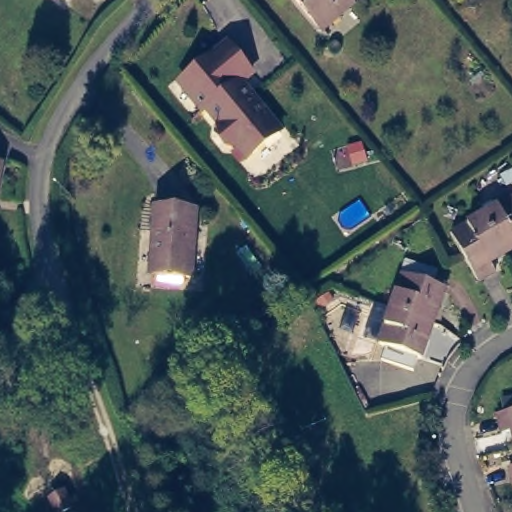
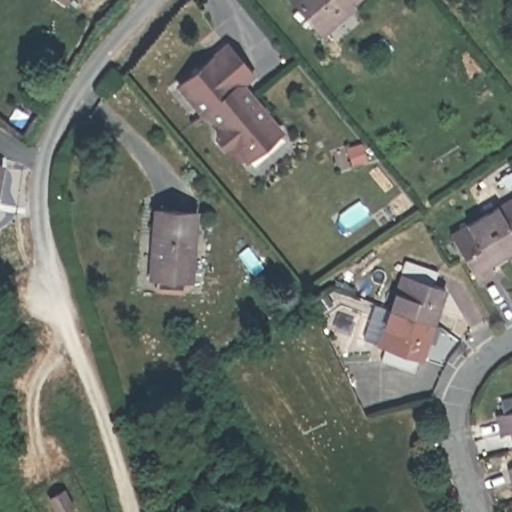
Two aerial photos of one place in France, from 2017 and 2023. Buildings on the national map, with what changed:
unchanged [(297,0),(352,0),(320,27),(297,0)]
unchanged [(228,42),(251,71),(241,80),(280,127),(246,156),(236,144),(226,143),(216,132),(218,121),(206,107),(203,110),(179,81),(228,42)]
unchanged [(0,201),(0,166),(5,166),(0,201)]
unchanged [(494,273),(478,283),(450,234),(512,200),(512,253),(489,264),(494,273)]
unchanged [(193,283),(153,279),(159,212),(201,214),(193,283)]
unchanged [(440,274),(437,286),(449,291),(424,363),(419,361),(415,373),(384,362),(388,350),(381,347),(406,277),(402,273),(406,261),(440,274)]
unchanged [(500,413),(512,410),(512,430),(506,432),(500,413)]

